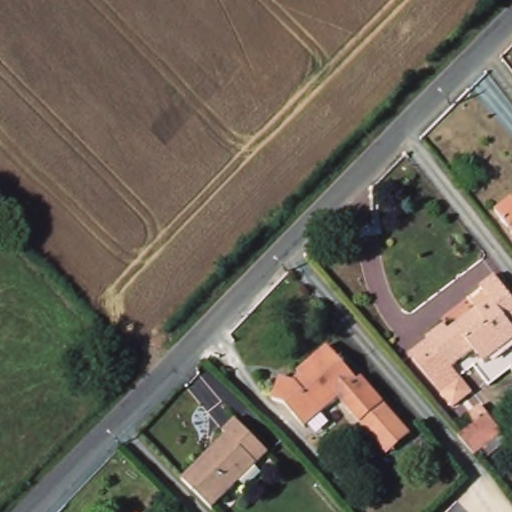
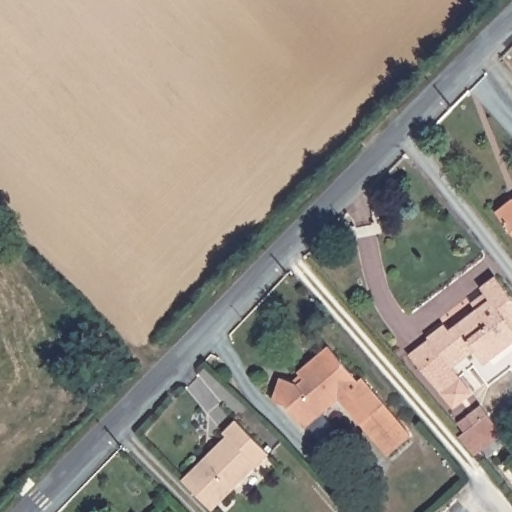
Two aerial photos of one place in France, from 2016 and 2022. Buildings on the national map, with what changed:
unchanged [(512,232),(495,211),(512,198),(512,232)]
unchanged [(496,277),(512,297),(512,341),(486,361),(477,351),(458,327),(495,298),(485,285),(496,277)]
unchanged [(457,367),(462,373),(443,390),(415,357),(435,341),(431,336),(451,320),(458,327),(477,351),(457,367)]
unchanged [(329,344),(357,376),(364,372),(384,395),(357,420),(308,362),(329,344)]
unchanged [(354,422),(333,397),(302,427),(280,402),(262,402),(261,377),(304,378),(312,372),(305,365),(308,362),(357,420),(354,422)]
unchanged [(410,430),(386,452),(357,420),(384,395),(410,430)]
unchanged [(478,425),(472,418),(484,407),(490,414),(505,434),(479,457),(463,437),(478,425)]
unchanged [(218,436),(234,420),(269,453),(213,510),(182,479),(222,440),(218,436)]

